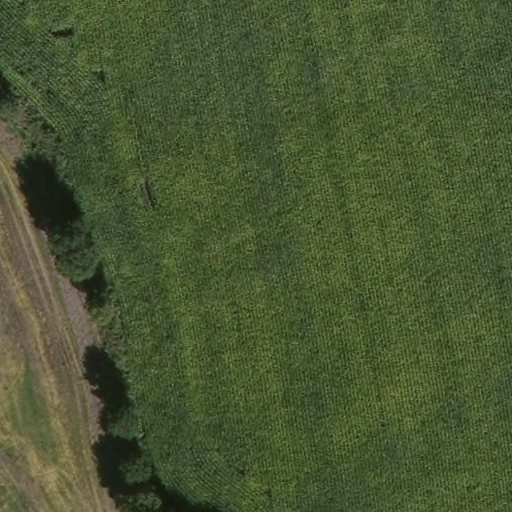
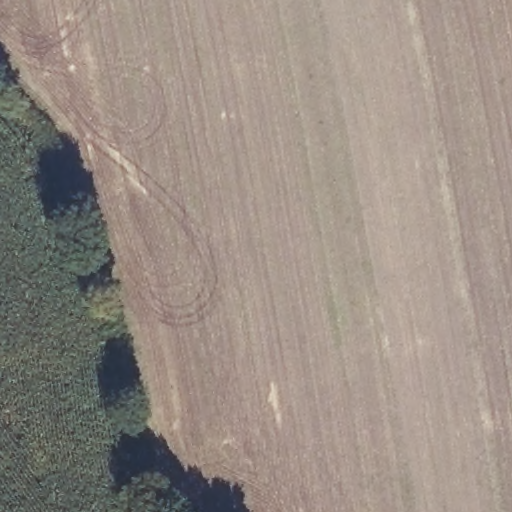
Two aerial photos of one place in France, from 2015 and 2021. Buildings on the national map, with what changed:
[]

